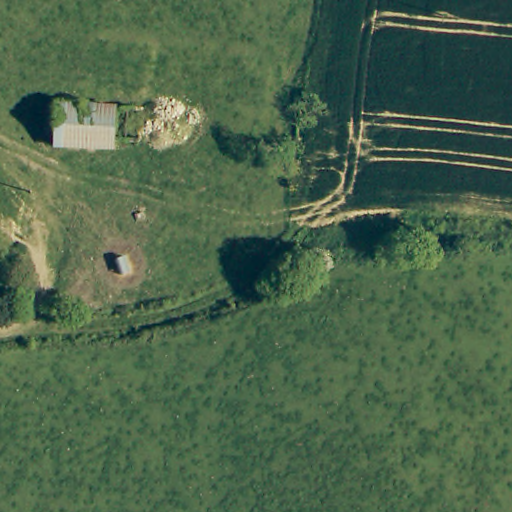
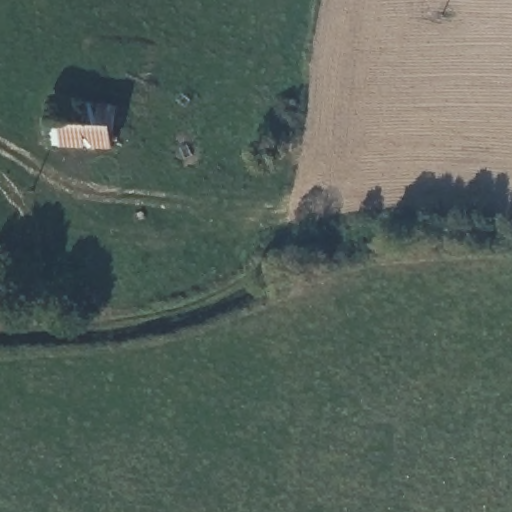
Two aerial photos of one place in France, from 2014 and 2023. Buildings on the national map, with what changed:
unchanged [(137,102),(135,139),(119,139),(118,146),(50,141),(50,100),(137,102)]

